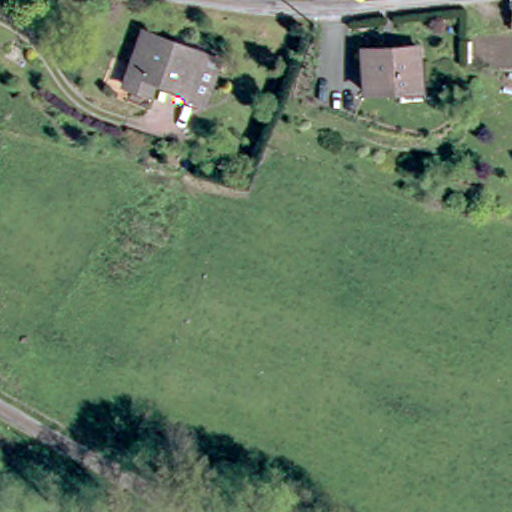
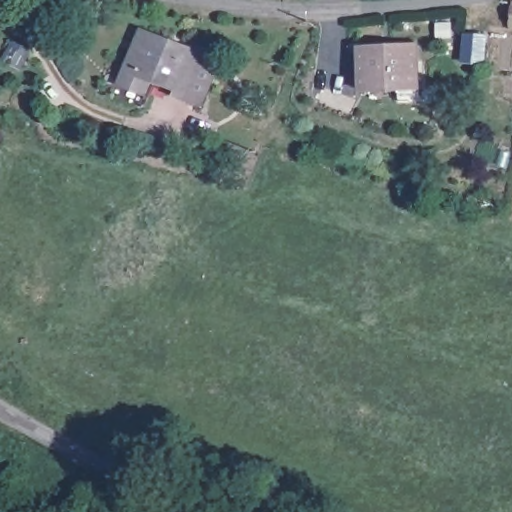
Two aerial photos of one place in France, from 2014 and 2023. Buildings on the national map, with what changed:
unchanged [(508,13),(512,2),(512,17),(508,13)]
unchanged [(180,91),(181,85),(146,72),(141,84),(117,75),(136,24),(194,45),(216,54),(212,65),(200,99),(180,91)]
unchanged [(357,46),(411,39),(418,85),(364,92),(357,46)]

